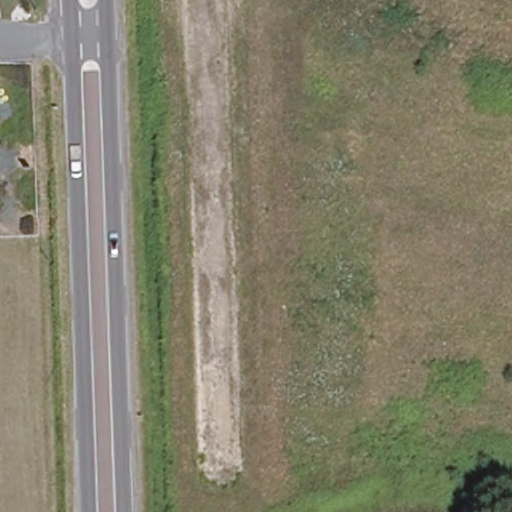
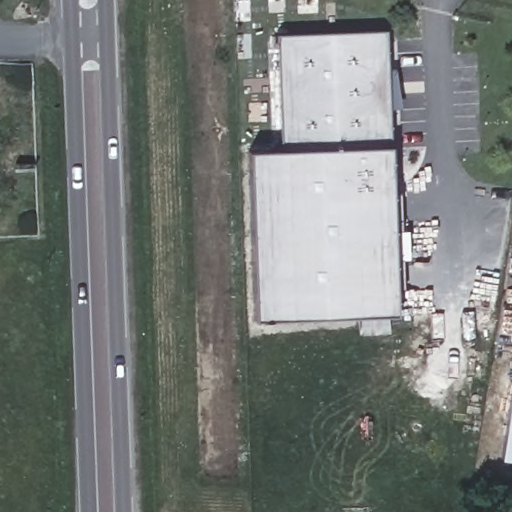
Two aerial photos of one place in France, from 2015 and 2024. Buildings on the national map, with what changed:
new [(390,146),(282,151),(276,34),(386,31),(390,146)]
new [(395,313),(256,320),(249,152),(282,151),(390,146),(395,313)]
new [(512,408),(512,455),(506,455),(512,408)]

